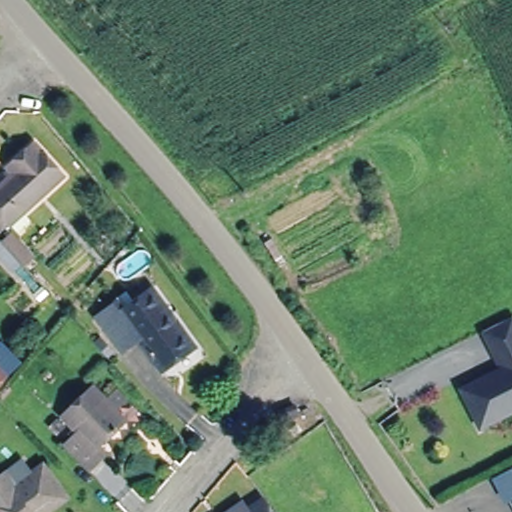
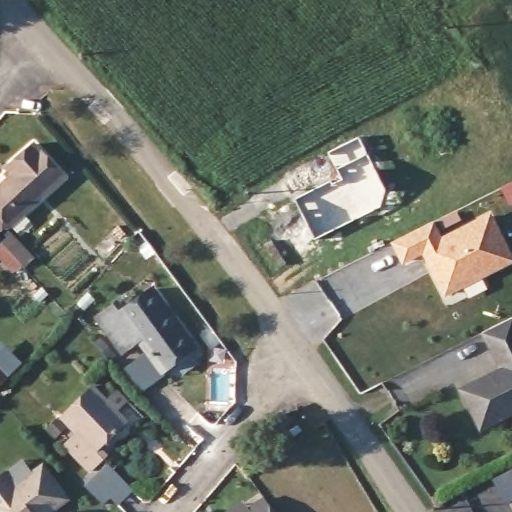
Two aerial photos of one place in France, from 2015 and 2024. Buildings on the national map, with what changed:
new [(387,191),(380,206),(315,239),(295,200),(341,176),(328,153),(358,137),(387,191)]
unchanged [(12,174),(7,168),(35,143),(64,176),(11,226),(7,222),(0,228),(0,186),(12,174)]
new [(445,295),(431,265),(435,263),(431,257),(427,259),(423,251),(403,262),(393,242),(431,223),(440,242),(488,218),(511,261),(480,277),(461,286),(445,295)]
unchanged [(189,342),(156,366),(134,335),(116,346),(92,312),(112,298),(117,306),(149,283),(189,342)]
unchanged [(512,330),(512,417),(480,433),(461,395),(500,375),(482,337),(509,324),(512,330)]
unchanged [(6,378),(0,384),(0,372),(6,378)]
unchanged [(100,399),(112,388),(124,401),(113,411),(122,422),(96,447),(102,455),(86,470),(61,445),(72,434),(56,416),(87,385),(100,399)]
unchanged [(283,411),(297,405),(302,415),(283,423),(278,412),(283,411)]
unchanged [(2,469),(18,457),(28,469),(38,461),(63,493),(39,512),(0,512),(0,471),(2,469)]
new [(506,504),(492,479),(512,469),(512,511),(508,503),(506,504)]
unchanged [(251,500),(259,512),(237,512),(251,500)]
unchanged [(231,507),(234,512),(225,512),(231,507)]

